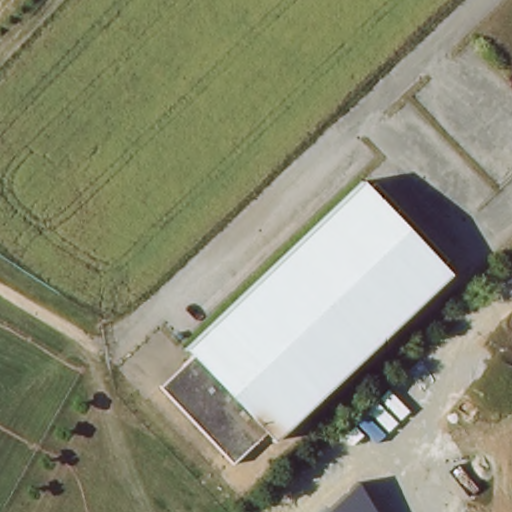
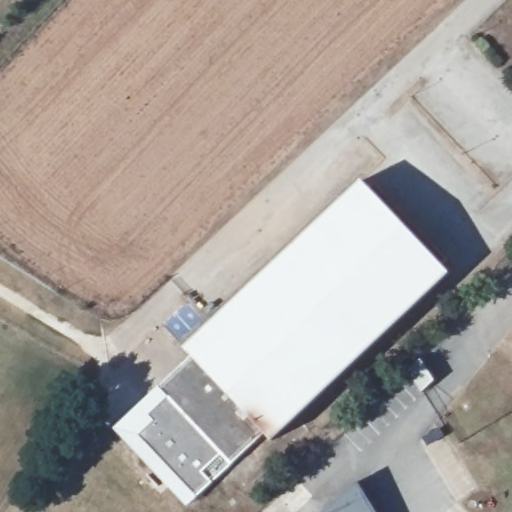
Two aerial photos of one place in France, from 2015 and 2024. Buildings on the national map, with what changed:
unchanged [(370,195),(381,185),(452,262),(453,263),(443,273),(449,280),(278,441),(271,433),(234,467),(208,439),(170,398),(193,376),(185,368),(198,355),(191,347),(362,187),(370,195)]
new [(185,368),(193,376),(170,398),(208,439),(233,465),(188,508),(115,430),(185,368)]
unchanged [(377,512),(329,512),(361,483),(377,512)]

